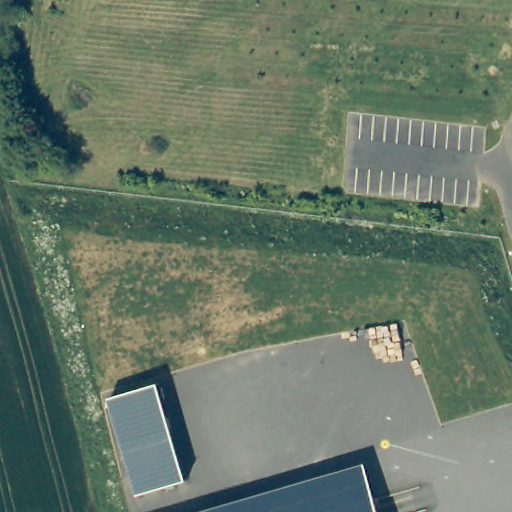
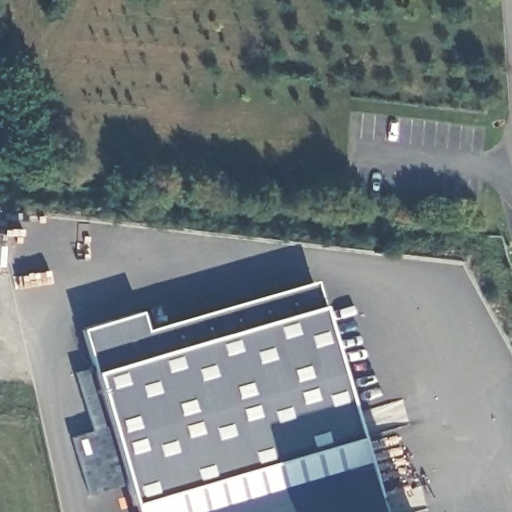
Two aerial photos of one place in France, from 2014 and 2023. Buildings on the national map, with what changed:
new [(134,512),(132,504),(95,373),(80,330),(141,311),(147,331),(315,281),(321,306),(367,462),(200,512),(134,512)]
unchanged [(381,512),(200,512),(367,462),(381,512)]

